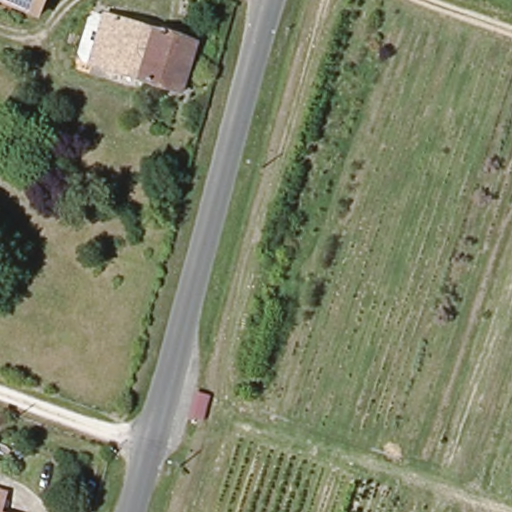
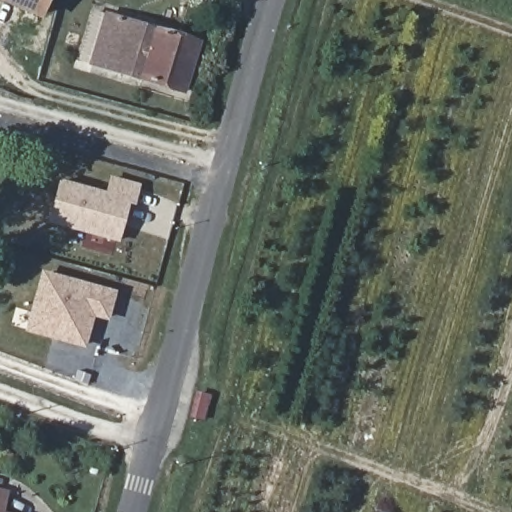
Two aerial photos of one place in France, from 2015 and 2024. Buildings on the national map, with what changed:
unchanged [(41,17),(0,1),(0,0),(48,0),(41,17)]
unchanged [(196,43),(182,89),(88,61),(102,15),(196,43)]
new [(104,192),(109,175),(141,183),(135,204),(129,202),(118,241),(48,222),(59,180),(104,192)]
new [(108,321),(94,318),(85,349),(27,333),(43,275),(50,272),(63,276),(62,279),(117,291),(108,321)]
unchanged [(3,504),(2,512),(0,512),(0,503),(3,504)]

